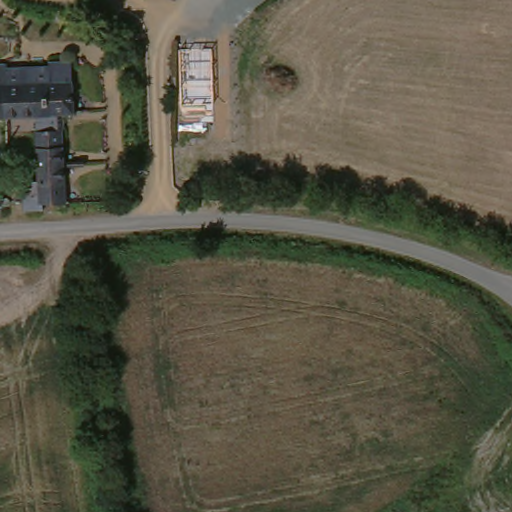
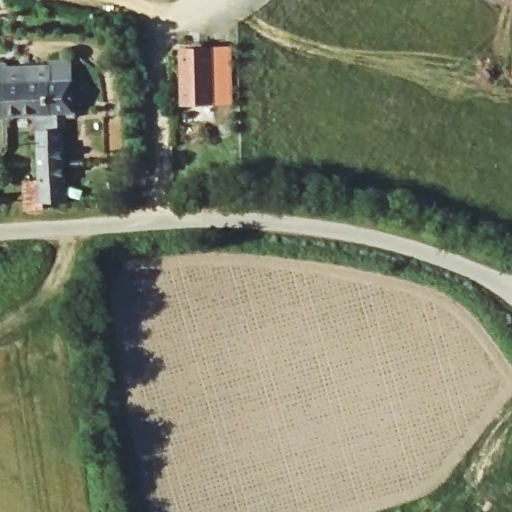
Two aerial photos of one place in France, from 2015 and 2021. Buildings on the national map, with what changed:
new [(180,46),(214,44),(215,104),(181,105),(180,46)]
unchanged [(1,71),(51,68),(50,59),(66,58),(69,85),(73,119),(5,121),(0,121),(0,61),(1,71)]
unchanged [(32,189),(27,136),(60,132),(64,202),(42,204),(42,210),(24,211),(24,206),(22,189),(32,189)]
unchanged [(0,206),(0,187),(11,186),(12,206),(0,206)]

